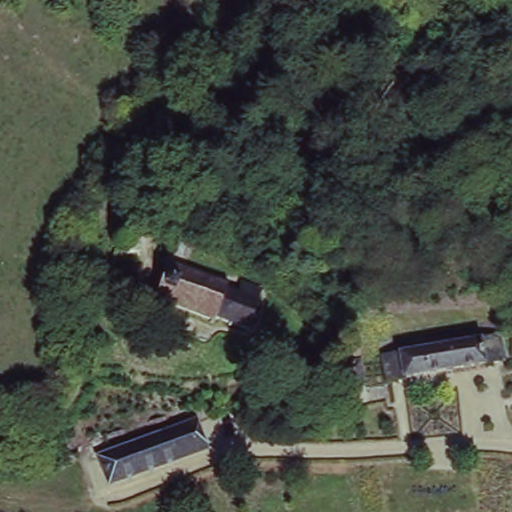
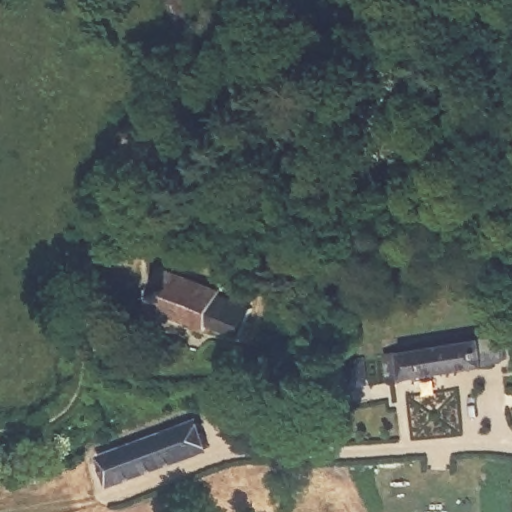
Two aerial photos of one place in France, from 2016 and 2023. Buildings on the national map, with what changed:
unchanged [(153,311),(165,264),(258,294),(247,337),(153,311)]
unchanged [(492,366),(385,383),(381,384),(379,355),(401,351),(487,336),(492,366)]
unchanged [(200,425),(210,455),(105,483),(96,453),(200,425)]

